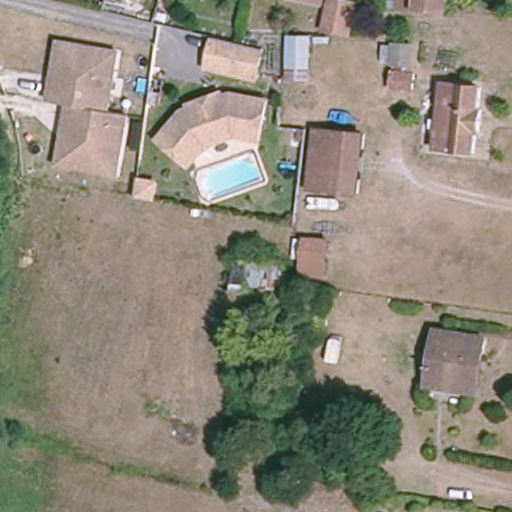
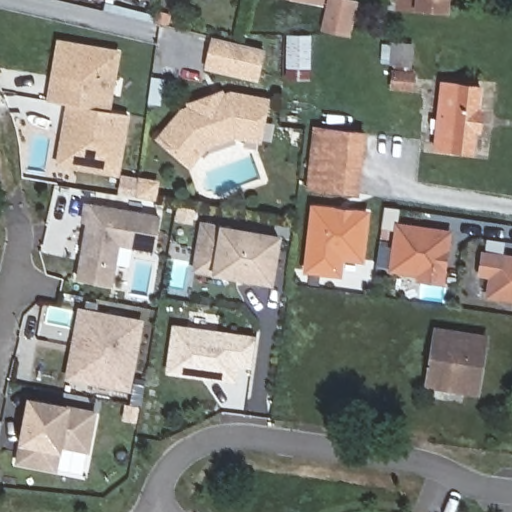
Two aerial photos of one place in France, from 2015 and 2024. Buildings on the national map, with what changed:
unchanged [(324,24),(329,0),(352,0),(345,29),(324,24)]
unchanged [(396,10),(396,0),(448,0),(448,14),(396,10)]
unchanged [(242,43),(264,49),(257,78),(208,66),(215,37),(242,43)]
unchanged [(286,83),(287,42),(312,42),(311,83),(286,83)]
unchanged [(70,106),(50,103),(53,86),(56,65),(60,43),(120,53),(115,78),(113,96),(110,112),(130,115),(120,175),(80,169),(60,165),(67,123),(70,106)]
unchanged [(415,76),(413,91),(392,89),(397,45),(412,47),(409,75),(415,76)]
unchanged [(483,110),(480,132),(476,131),(474,152),(436,148),(438,128),(431,128),(432,120),(439,121),(443,85),(481,89),(479,109),(483,110)]
unchanged [(244,139),(233,137),(204,147),(188,166),(157,140),(180,113),(189,110),(187,106),(212,98),(219,95),(220,99),(230,96),(266,102),(261,124),(258,142),(244,139)]
unchanged [(307,189),(315,128),(366,134),(359,194),(307,189)]
unchanged [(140,181),(156,183),(156,200),(137,198),(140,181)]
new [(120,248),(113,285),(76,279),(86,222),(82,222),(85,203),(160,215),(155,251),(120,248)]
new [(342,278),(303,274),(312,205),(370,212),(364,264),(344,262),(342,278)]
new [(416,283),(417,275),(390,272),(394,223),(452,229),(445,286),(416,283)]
new [(271,281),(214,273),(216,251),(198,248),(202,225),(278,237),(271,281)]
new [(478,277),(481,252),(512,255),(512,301),(486,298),(488,278),(478,277)]
demolished [(290,269),(285,293),(248,287),(247,293),(231,290),(238,259),(290,269)]
new [(66,379),(79,309),(144,319),(129,390),(66,379)]
new [(174,327),(255,339),(251,366),(236,363),(234,380),(167,371),(174,327)]
unchanged [(476,359),(471,389),(430,382),(437,334),(485,341),(482,360),(476,359)]
new [(87,449),(58,446),(56,468),(17,461),(21,436),(28,431),(30,418),(25,417),(28,401),(93,412),(87,449)]

